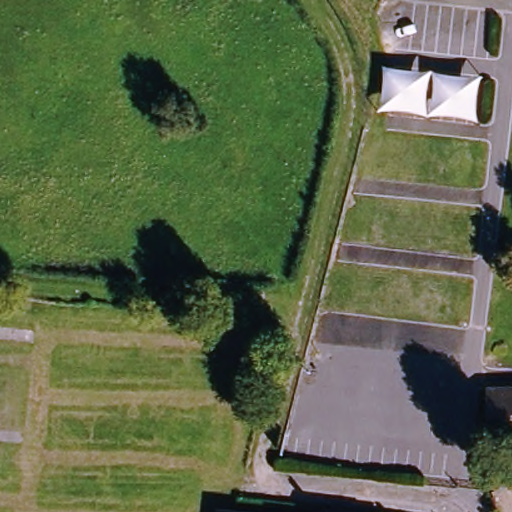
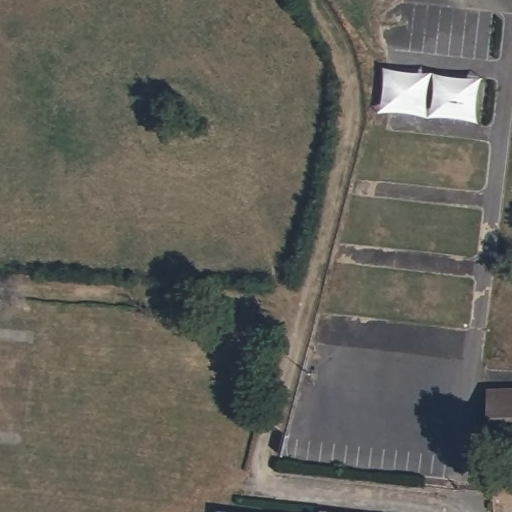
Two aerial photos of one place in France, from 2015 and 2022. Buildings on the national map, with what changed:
unchanged [(493,428),(493,426),(491,394),(512,392),(512,426),(493,428)]
unchanged [(324,507),(326,496),(390,506),(388,512),(284,512),(285,502),(324,507)]
unchanged [(247,505),(281,512),(225,512),(227,502),(247,505)]

